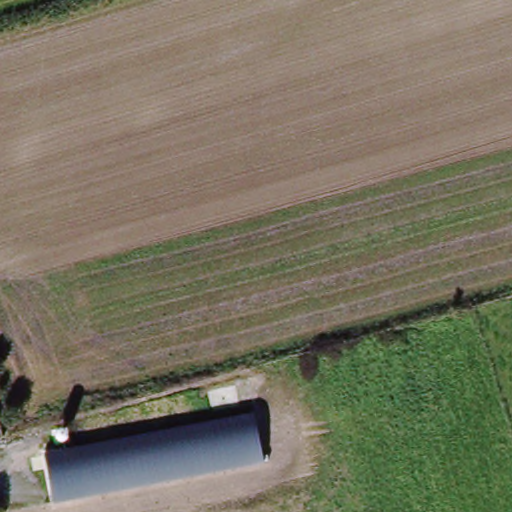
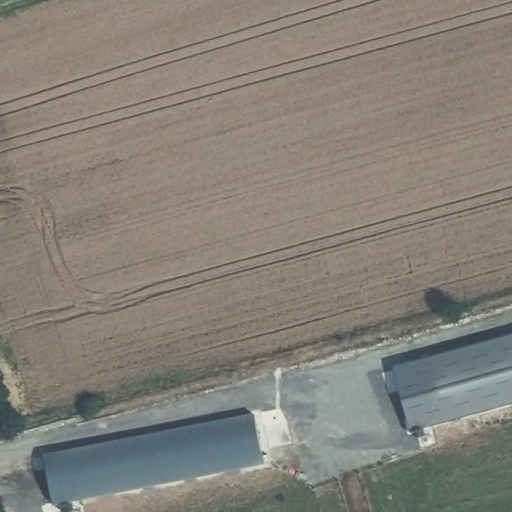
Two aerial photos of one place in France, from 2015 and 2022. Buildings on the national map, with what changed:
new [(512,331),(512,395),(414,422),(398,363),(512,331)]
unchanged [(255,416),(263,461),(53,501),(46,455),(255,416)]

